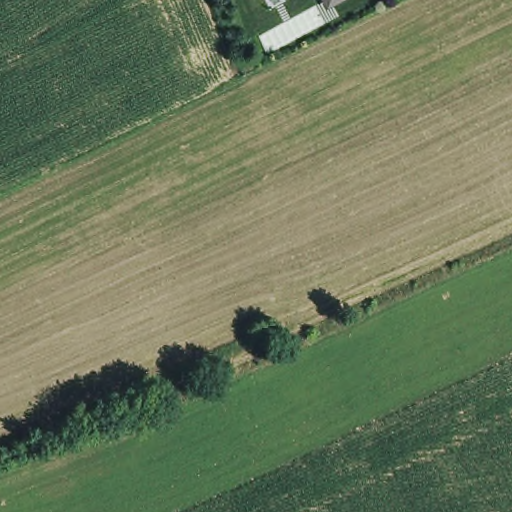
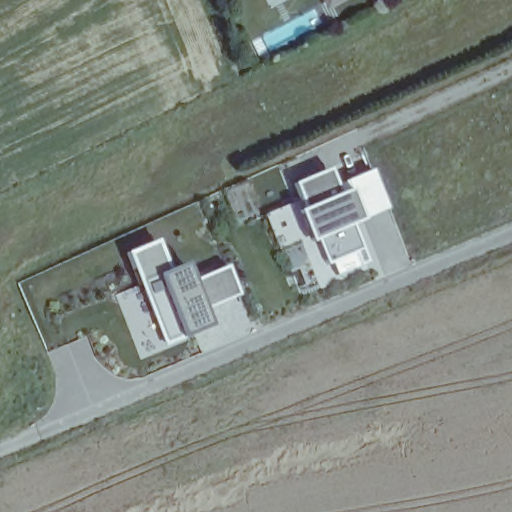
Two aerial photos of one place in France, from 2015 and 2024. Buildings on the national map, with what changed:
unchanged [(322,0),(345,0),(327,10),(322,0)]
new [(363,223),(354,227),(352,222),(370,264),(360,268),(355,256),(328,267),(315,236),(280,251),(266,217),(300,202),(293,186),(330,171),(337,187),(373,172),(388,205),(361,217),(361,218),(363,223)]
new [(165,346),(165,343),(132,267),(128,257),(155,245),(160,256),(175,291),(227,269),(238,297),(186,318),(203,312),(210,327),(165,346)]
new [(186,271),(192,284),(175,291),(169,277),(186,271)]

